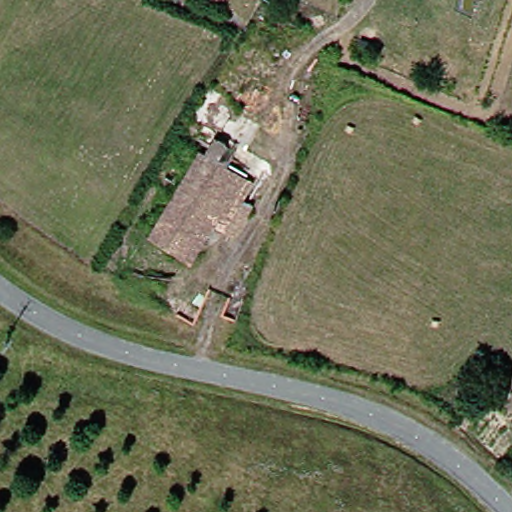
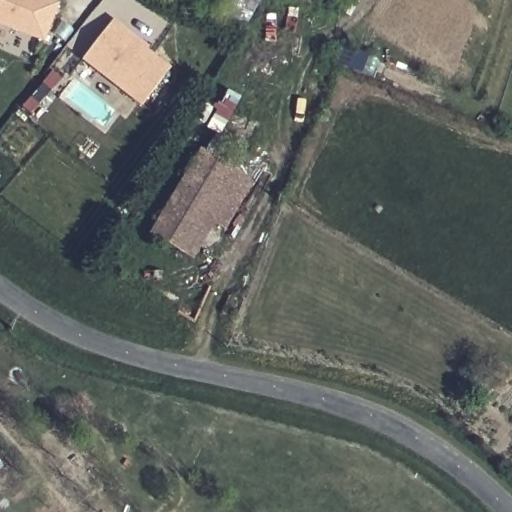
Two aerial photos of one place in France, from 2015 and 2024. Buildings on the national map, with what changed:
new [(46,39),(0,21),(0,0),(49,0),(61,5),(46,39)]
new [(124,31),(121,35),(166,70),(139,105),(81,60),(111,21),(124,31)]
unchanged [(230,211),(218,204),(184,256),(143,231),(185,166),(199,144),(252,175),(230,211)]

